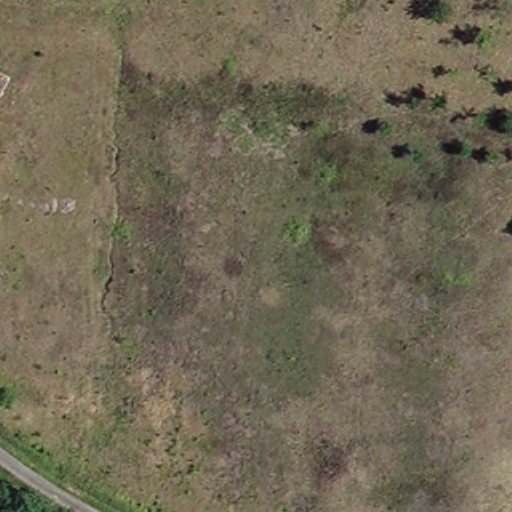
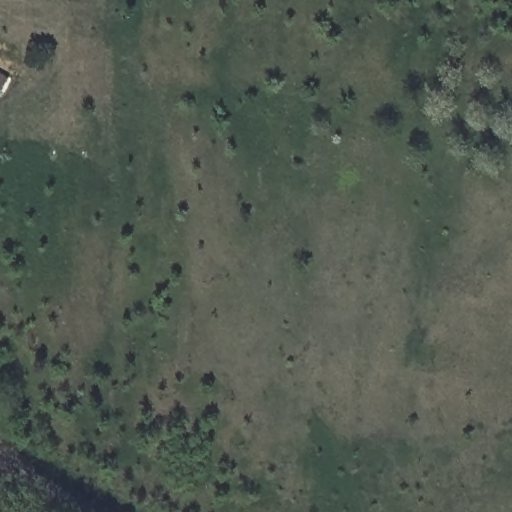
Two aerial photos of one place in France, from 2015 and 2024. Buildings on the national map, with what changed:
unchanged [(17,101),(0,98),(0,86),(1,80),(21,82),(17,101)]

